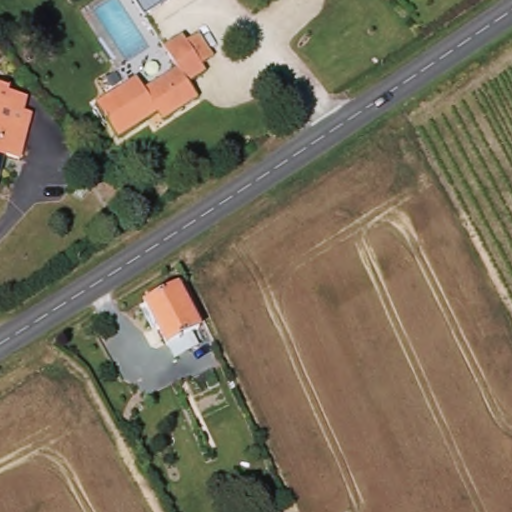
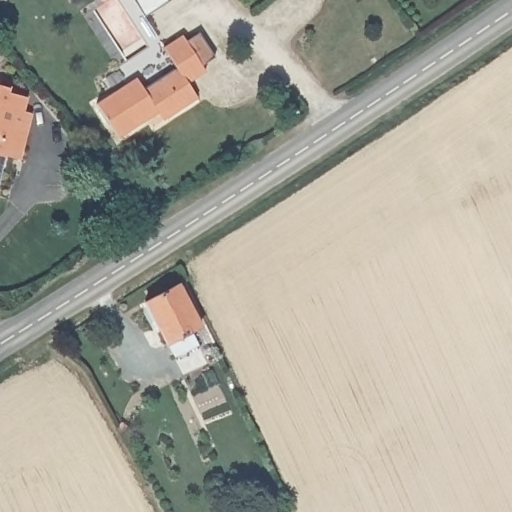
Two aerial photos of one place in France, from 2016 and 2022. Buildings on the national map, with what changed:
unchanged [(172,0),(143,19),(131,0),(172,0)]
unchanged [(172,70),(157,52),(176,37),(182,46),(196,36),(212,57),(199,68),(202,71),(185,85),(196,99),(164,125),(159,119),(123,146),(97,110),(129,85),(138,95),(172,70)]
unchanged [(11,89),(9,95),(28,98),(25,113),(33,114),(29,132),(26,131),(20,161),(3,158),(0,171),(0,86),(11,89)]
unchanged [(175,290),(196,331),(166,347),(145,306),(175,290)]

